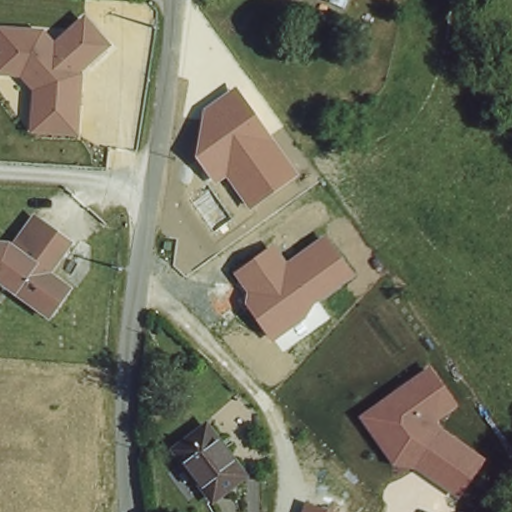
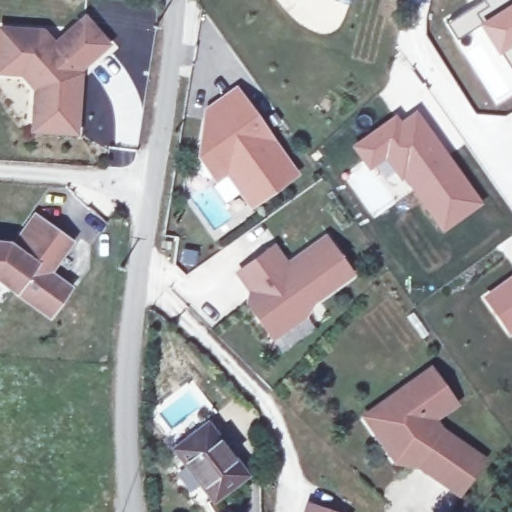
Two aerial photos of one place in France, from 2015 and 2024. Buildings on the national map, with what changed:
new [(492,12),(510,0),(512,0),(512,69),(508,62),(512,61),(505,51),(498,55),(477,24),(492,12)]
new [(492,12),(483,0),(510,0),(492,12)]
unchanged [(80,136),(30,133),(32,91),(20,76),(0,75),(0,26),(45,29),(57,41),(85,15),(113,46),(83,72),(80,136)]
unchanged [(236,85),(301,175),(250,211),(227,178),(215,186),(196,159),(204,107),(236,85)]
new [(397,112),(402,119),(416,109),(483,203),(442,234),(410,192),(383,163),(370,172),(350,146),(397,112)]
unchanged [(70,280),(44,312),(0,278),(0,238),(11,239),(33,210),(67,237),(49,265),(70,280)]
unchanged [(276,245),(287,262),(325,234),(354,276),(313,305),(307,317),(272,343),(243,305),(247,293),(234,272),(276,245)]
new [(512,273),(512,334),(510,336),(480,296),(512,273)]
unchanged [(460,494),(417,464),(394,462),(365,416),(430,371),(455,406),(434,421),(442,432),(483,460),(460,494)]
unchanged [(238,476),(210,498),(171,447),(200,426),(238,476)]
unchanged [(341,512),(303,512),(307,500),(341,512)]

